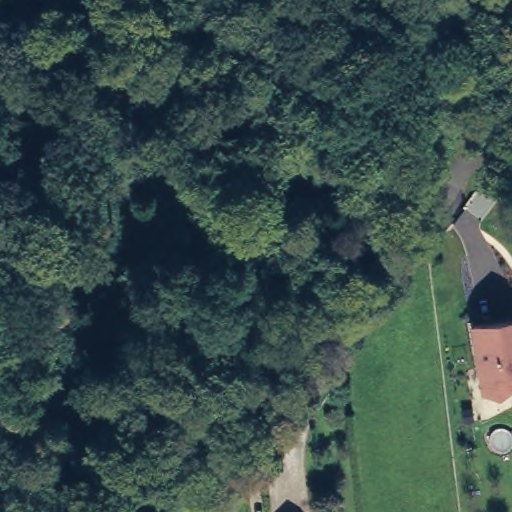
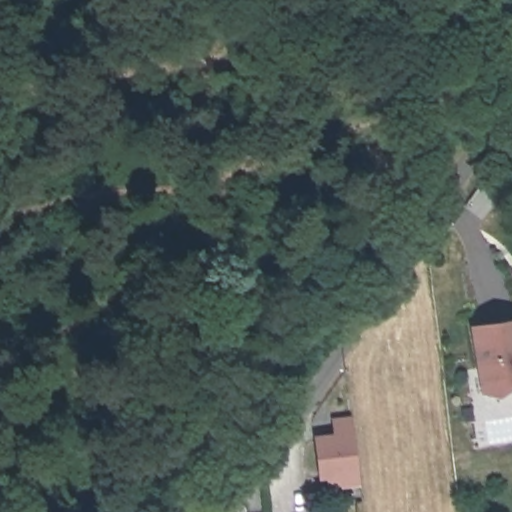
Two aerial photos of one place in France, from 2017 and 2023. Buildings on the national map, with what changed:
unchanged [(512,316),(512,376),(508,377),(509,382),(496,390),(481,386),(471,322),(512,316)]
new [(352,431),(356,474),(329,477),(329,468),(321,469),(317,435),(352,431)]

